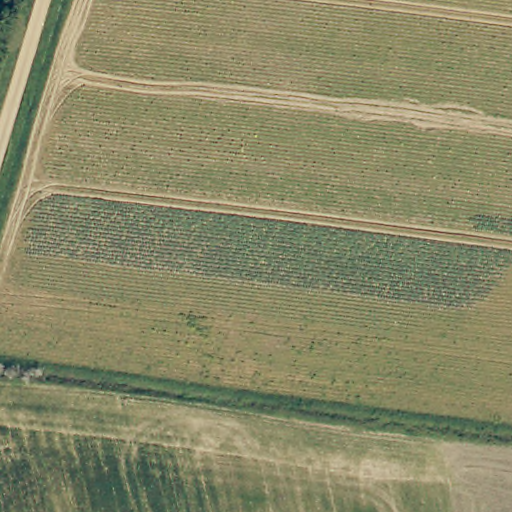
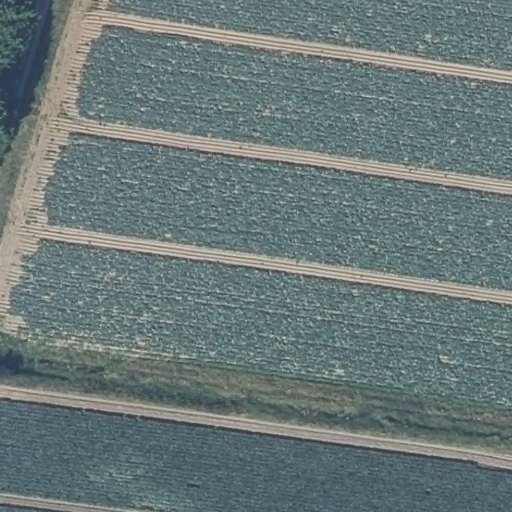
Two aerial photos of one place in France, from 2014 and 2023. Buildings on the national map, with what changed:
[]

